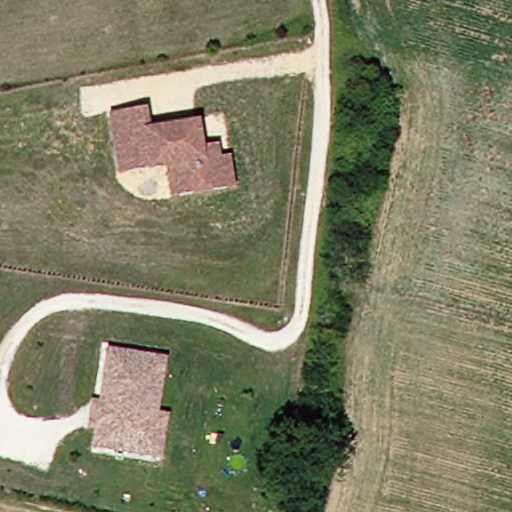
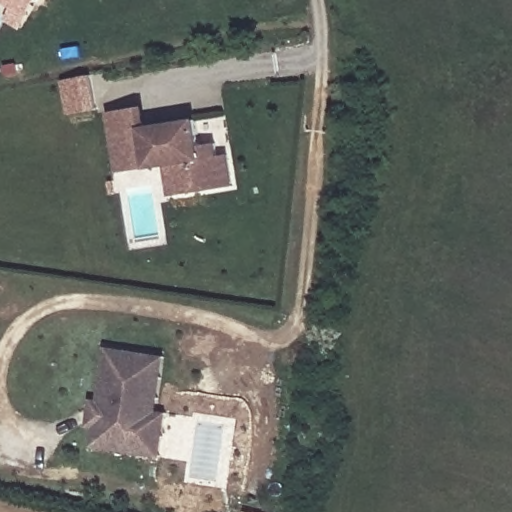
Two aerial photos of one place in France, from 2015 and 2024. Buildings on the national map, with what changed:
new [(5,19),(12,8),(0,1),(0,0),(39,0),(22,29),(5,19)]
new [(98,109),(69,115),(62,80),(92,75),(98,109)]
unchanged [(109,108),(140,103),(144,124),(199,114),(202,140),(217,138),(220,150),(229,149),(235,179),(172,190),(167,160),(163,139),(115,147),(109,108)]
unchanged [(119,168),(115,147),(163,139),(167,160),(119,168)]
unchanged [(99,427),(92,426),(95,400),(102,401),(110,348),(154,354),(152,374),(159,376),(150,434),(158,434),(155,455),(102,448),(97,447),(99,427)]
unchanged [(169,356),(162,411),(171,413),(165,457),(155,455),(158,434),(150,434),(159,376),(152,374),(154,354),(169,356)]

